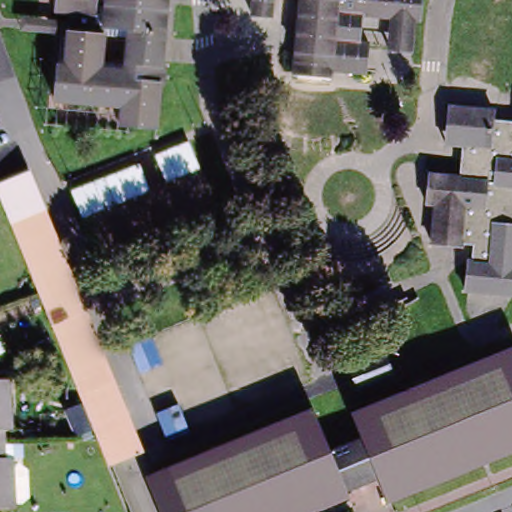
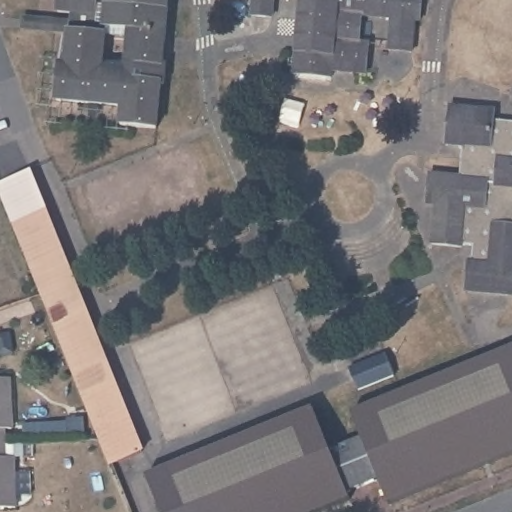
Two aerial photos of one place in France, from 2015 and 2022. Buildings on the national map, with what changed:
unchanged [(75,20),(76,11),(60,9),(62,0),(172,0),(162,70),(165,70),(162,87),(160,87),(153,131),(117,126),(120,109),(54,98),(59,62),(65,64),(70,33),(23,26),(25,12),(75,20)]
unchanged [(255,16),(257,0),(278,0),(276,18),(255,16)]
unchanged [(365,17),(363,42),(372,44),(370,76),(336,74),(336,79),(296,75),(303,0),(426,0),(424,22),(418,22),(415,55),(390,53),(393,20),(365,17)]
unchanged [(465,287),(467,256),(470,257),(471,244),(430,240),(433,202),(425,201),(427,170),(440,171),(458,172),(460,144),(457,142),(444,141),(447,102),(461,104),(493,106),(492,116),(512,118),(512,292),(503,291),(465,287)]
unchanged [(0,182),(0,180),(28,169),(69,268),(142,449),(113,461),(0,182)]
unchanged [(310,404),(328,447),(360,434),(351,413),(512,346),(512,454),(389,505),(377,477),(346,490),(348,496),(311,512),(161,512),(145,473),(310,404)]
unchanged [(360,391),(351,370),(386,356),(395,377),(360,391)]
unchanged [(10,379),(12,430),(4,430),(5,458),(13,458),(16,509),(0,510),(0,379),(10,379)]

